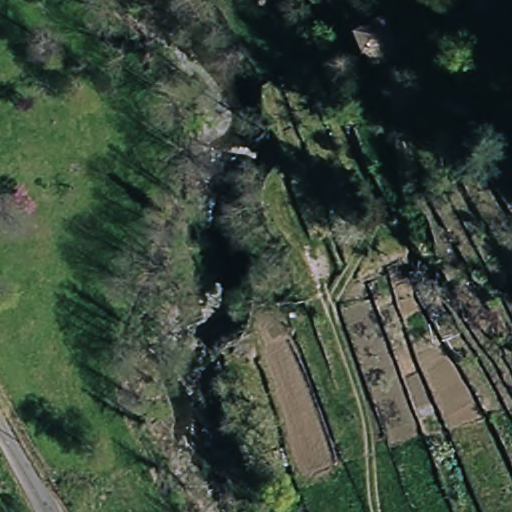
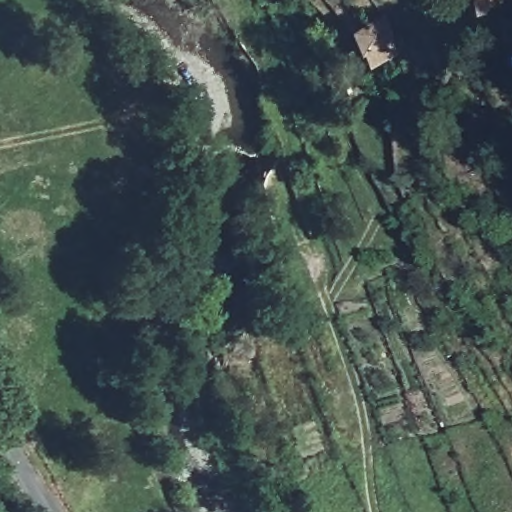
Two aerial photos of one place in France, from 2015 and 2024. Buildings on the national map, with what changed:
unchanged [(471,0),(505,0),(506,3),(472,9),(471,0)]
unchanged [(388,9),(399,55),(374,67),(354,28),(388,9)]
unchanged [(507,145),(512,142),(512,155),(507,145)]
unchanged [(512,168),(512,175),(504,181),(492,164),(505,158),(512,168)]

